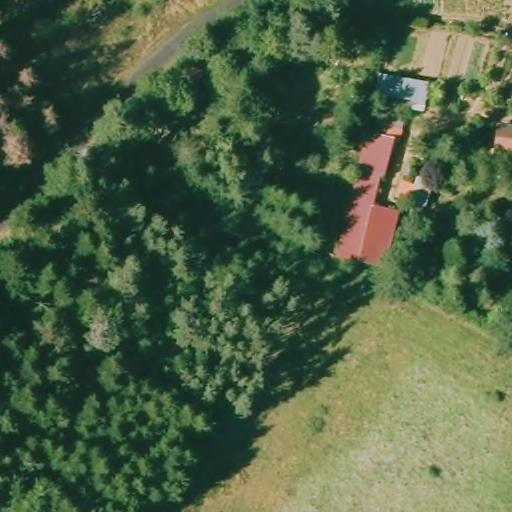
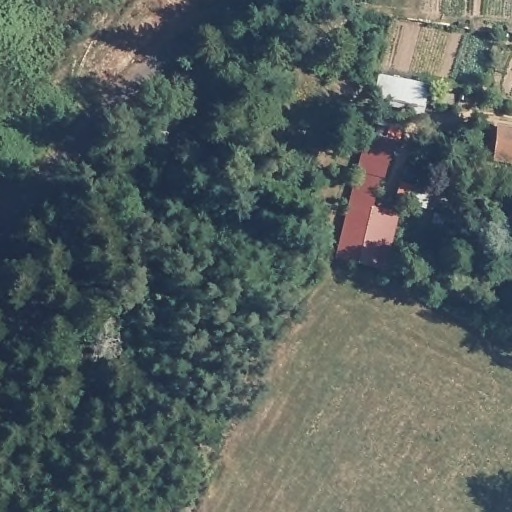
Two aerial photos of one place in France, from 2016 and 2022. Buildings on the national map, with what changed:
unchanged [(431,87),(425,115),(409,110),(404,140),(396,138),(385,177),(379,207),(403,214),(390,272),(346,261),(361,172),(371,132),(384,135),(390,106),(398,79),(431,87)]
unchanged [(512,129),(512,165),(496,162),(503,127),(512,129)]

